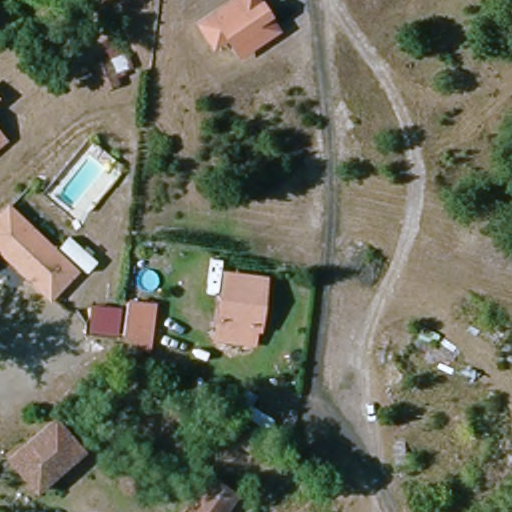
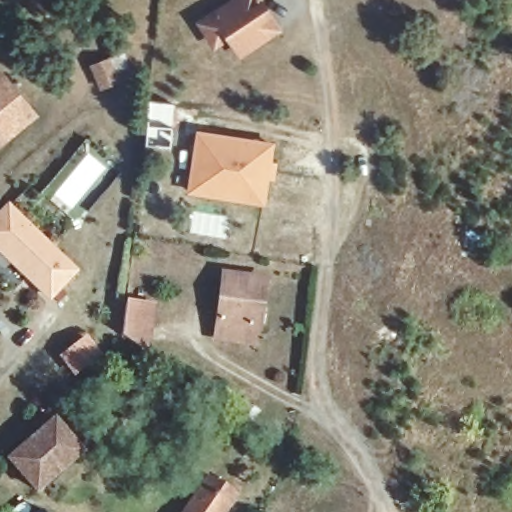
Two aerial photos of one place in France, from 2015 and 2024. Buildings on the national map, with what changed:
unchanged [(202,23),(217,15),(241,0),(256,0),(275,32),(239,54),(228,35),(215,43),(202,23)]
unchanged [(143,76),(101,94),(89,66),(131,49),(143,76)]
new [(39,117),(4,142),(0,138),(0,72),(2,71),(39,117)]
new [(147,100),(175,103),(170,148),(144,146),(147,100)]
new [(195,130),(275,142),(265,207),(185,193),(195,130)]
unchanged [(0,145),(0,138),(4,142),(0,145)]
unchanged [(27,278),(0,252),(0,216),(7,208),(52,251),(75,271),(49,298),(27,278)]
unchanged [(216,336),(227,272),(265,277),(258,325),(253,325),(251,340),(216,336)]
unchanged [(131,300),(155,303),(149,352),(126,337),(131,300)]
unchanged [(37,490),(12,461),(55,422),(79,451),(37,490)]
unchanged [(233,499),(224,512),(186,512),(217,467),(242,485),(239,491),(233,499)]

